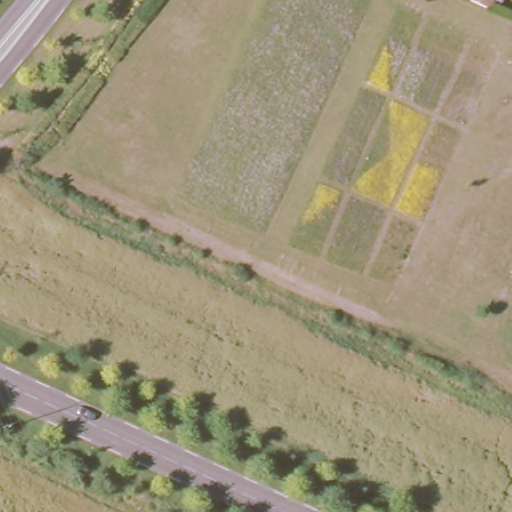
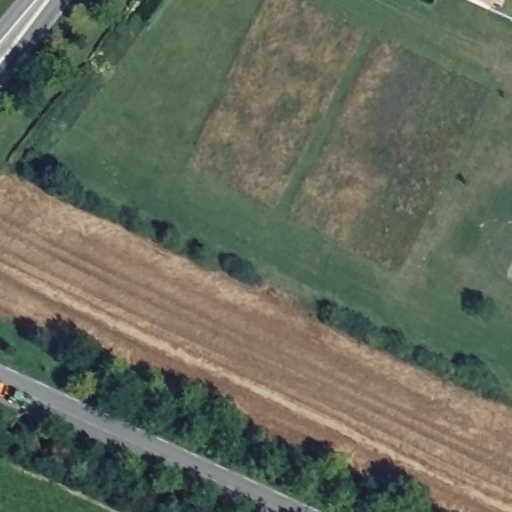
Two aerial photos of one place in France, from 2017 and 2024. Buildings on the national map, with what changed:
unchanged [(466,0),(490,0),(486,9),(466,0)]

